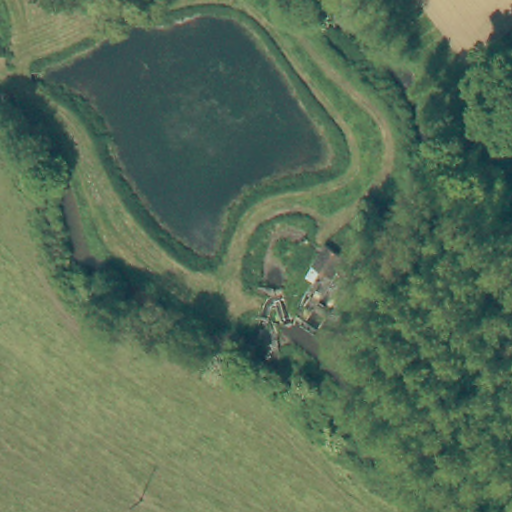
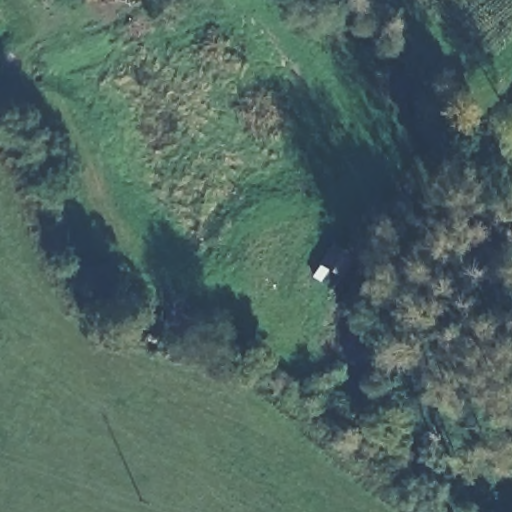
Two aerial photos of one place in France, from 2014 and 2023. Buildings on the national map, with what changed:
unchanged [(330,236),(347,251),(335,272),(329,268),(323,278),(309,272),(330,236)]

